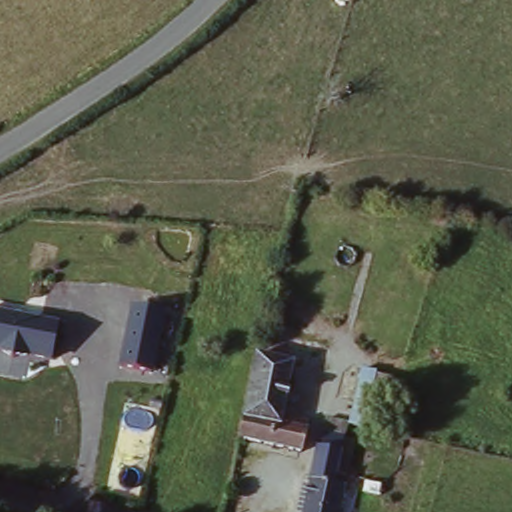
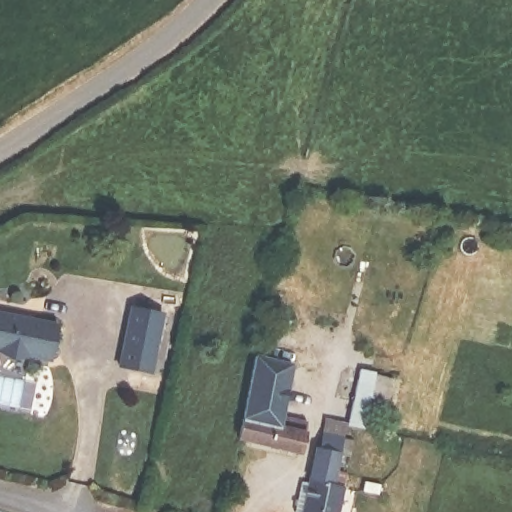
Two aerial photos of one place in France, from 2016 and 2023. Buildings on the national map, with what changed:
unchanged [(131,305),(162,310),(153,372),(119,365),(131,305)]
unchanged [(49,361),(0,354),(0,313),(57,323),(49,361)]
unchanged [(252,355),(255,356),(260,357),(292,364),(280,413),(306,420),(298,455),(235,439),(252,355)]
unchanged [(360,371),(393,379),(388,401),(352,392),(360,371)]
unchanged [(339,512),(304,512),(320,433),(333,437),(337,423),(358,426),(339,512)]

